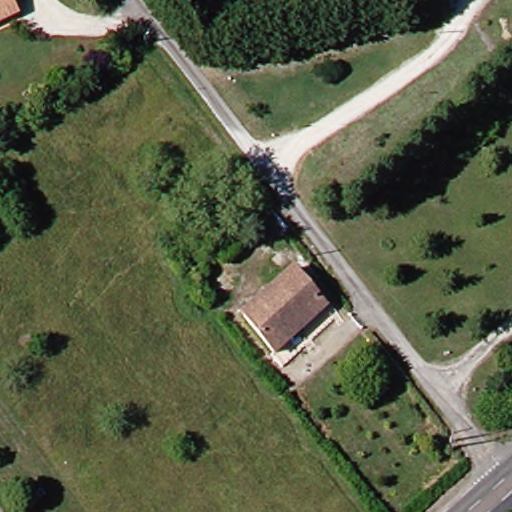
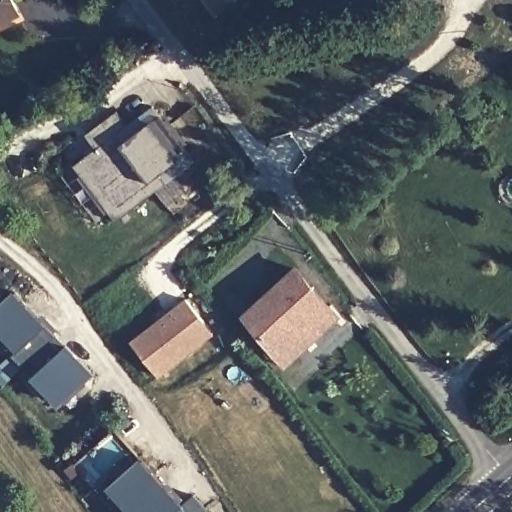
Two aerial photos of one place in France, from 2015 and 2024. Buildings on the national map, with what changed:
unchanged [(15,16),(0,23),(0,0),(7,0),(15,16)]
unchanged [(230,4),(220,11),(210,0),(226,0),(230,4)]
new [(93,152),(83,137),(115,114),(126,129),(152,110),(193,166),(113,227),(70,169),(93,152)]
unchanged [(330,316),(308,331),(281,290),(302,275),(330,316)]
unchanged [(275,355),(247,315),(281,290),(308,331),(275,355)]
new [(54,410),(19,371),(9,360),(14,355),(0,340),(0,308),(13,296),(53,340),(63,351),(88,379),(54,410)]
new [(202,321),(212,332),(200,342),(158,378),(130,345),(185,300),(202,321)]
new [(141,461),(180,508),(191,498),(203,512),(129,512),(110,489),(141,461)]

